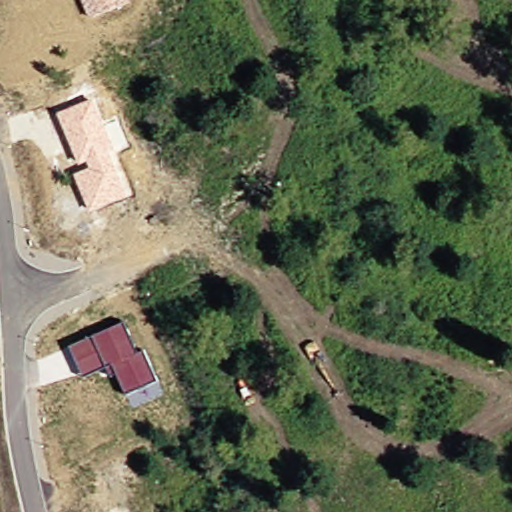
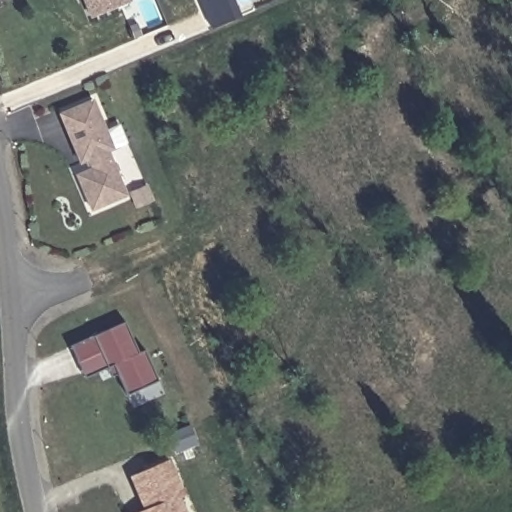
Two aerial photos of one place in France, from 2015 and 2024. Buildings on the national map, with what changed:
unchanged [(133,1),(90,19),(81,0),(133,0),(133,1)]
new [(244,15),(217,26),(204,0),(237,0),(244,15)]
unchanged [(117,151),(112,153),(128,197),(92,213),(75,175),(89,167),(87,161),(78,164),(57,114),(94,99),(117,151)]
unchanged [(138,354),(144,350),(158,381),(126,395),(117,375),(112,377),(107,367),(85,377),(70,345),(123,321),(138,354)]
new [(133,473),(171,457),(186,492),(181,494),(189,512),(136,512),(141,509),(147,507),(133,473)]

